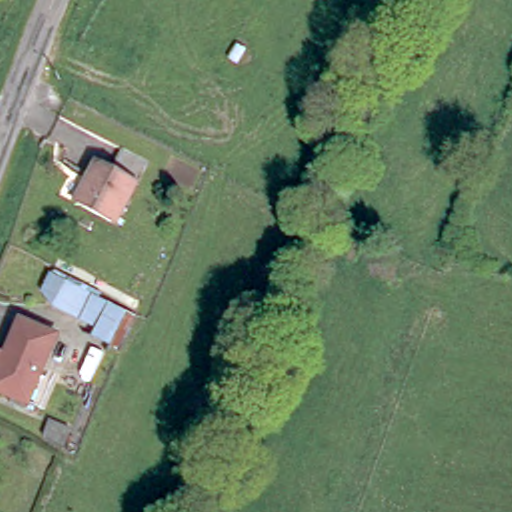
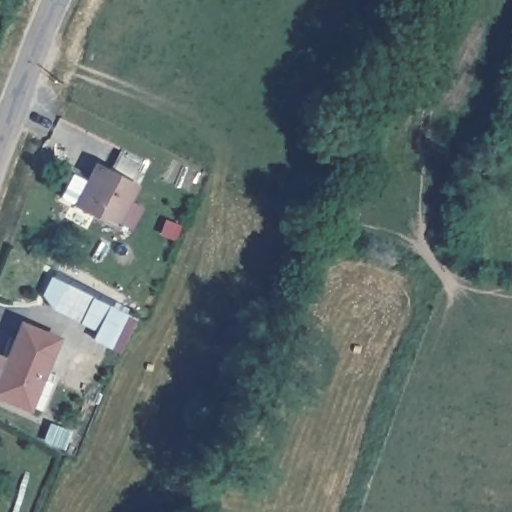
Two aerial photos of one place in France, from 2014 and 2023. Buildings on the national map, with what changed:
unchanged [(90,168),(104,175),(116,153),(131,162),(142,168),(129,190),(107,229),(106,228),(68,207),(90,168)]
unchanged [(68,308),(80,287),(134,316),(141,320),(130,341),(122,337),(68,308)]
unchanged [(0,388),(0,353),(2,348),(18,356),(34,322),(69,339),(38,405),(3,389),(0,388)]

